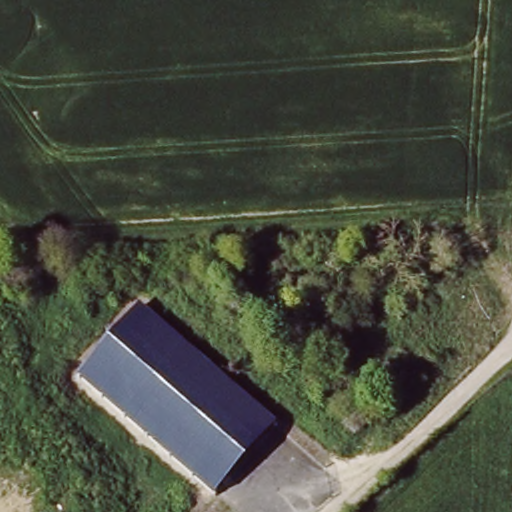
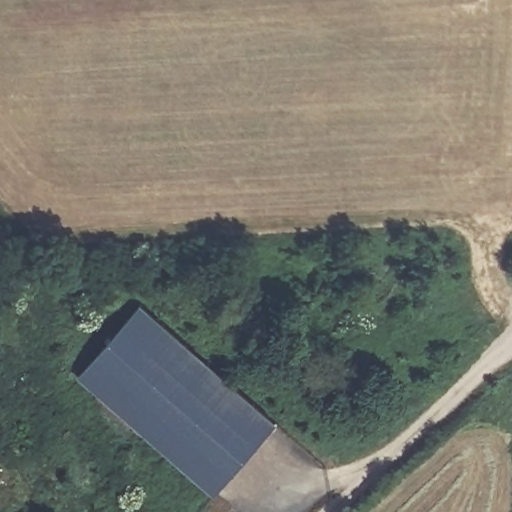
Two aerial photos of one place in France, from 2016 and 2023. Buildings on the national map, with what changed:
unchanged [(138,301),(275,422),(213,495),(78,373),(138,301)]

